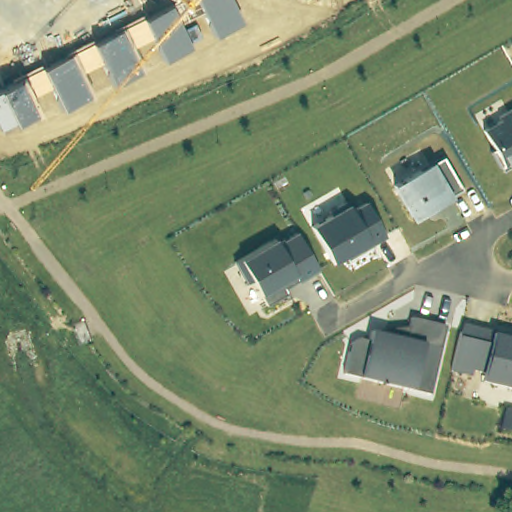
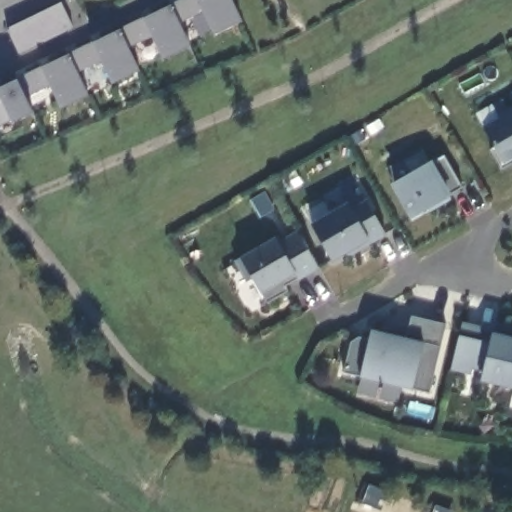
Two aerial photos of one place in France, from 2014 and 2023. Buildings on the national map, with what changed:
unchanged [(184,0),(229,0),(240,24),(212,37),(203,13),(179,24),(189,47),(163,61),(152,37),(131,47),(141,70),(109,84),(100,64),(81,72),(89,99),(60,111),(50,87),(30,96),(37,114),(0,128),(0,88),(17,79),(184,0)]
new [(62,4),(74,29),(19,54),(7,31),(62,4)]
unchanged [(495,117),(512,108),(512,164),(500,171),(488,154),(495,149),(483,129),(498,122),(495,117)]
unchanged [(423,166),(441,157),(461,191),(449,198),(410,220),(391,187),(423,166)]
unchanged [(347,205),(350,211),(366,202),(383,237),(346,257),(343,255),(330,262),(311,225),(347,205)]
unchanged [(240,258),(274,239),(277,245),(297,232),(316,270),(282,287),(284,292),(264,303),(251,280),(242,283),(231,262),(240,258)]
unchanged [(350,342),(355,338),(366,340),(368,331),(406,327),(408,317),(444,326),(428,395),(410,390),(360,378),(344,372),(350,342)]
unchanged [(489,332),(512,337),(512,388),(478,380),(481,372),(469,370),(467,375),(448,371),(460,325),(489,332)]
unchanged [(512,409),(512,432),(497,429),(504,407),(512,409)]

